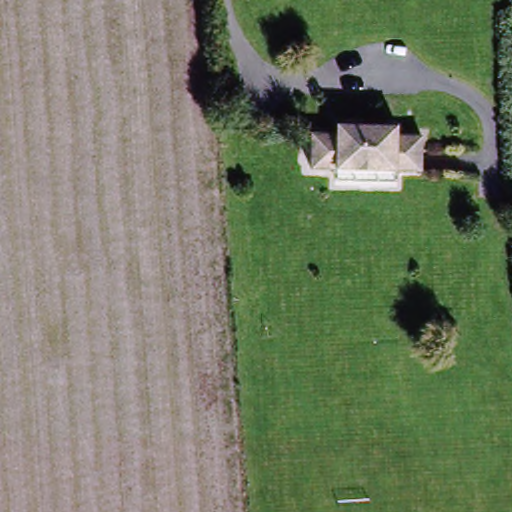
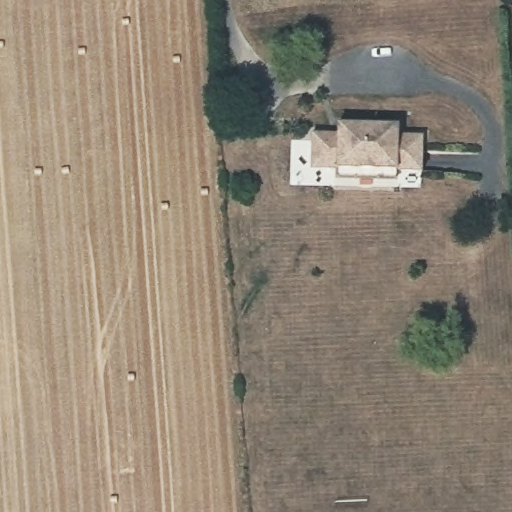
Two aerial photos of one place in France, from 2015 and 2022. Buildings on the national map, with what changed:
unchanged [(340,124),(344,124),(399,123),(400,133),(424,133),(425,168),(402,169),(343,170),(319,170),(318,135),(340,134),(340,124)]

